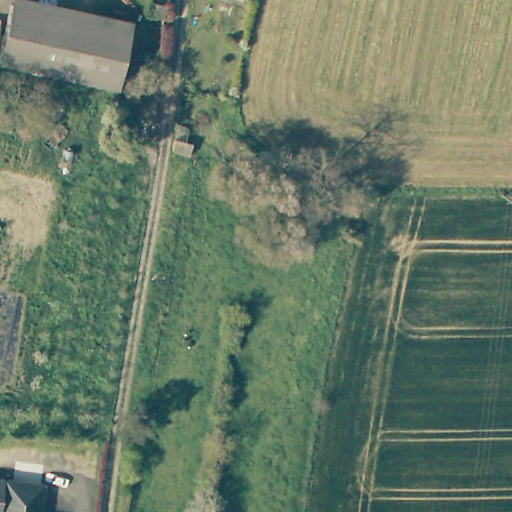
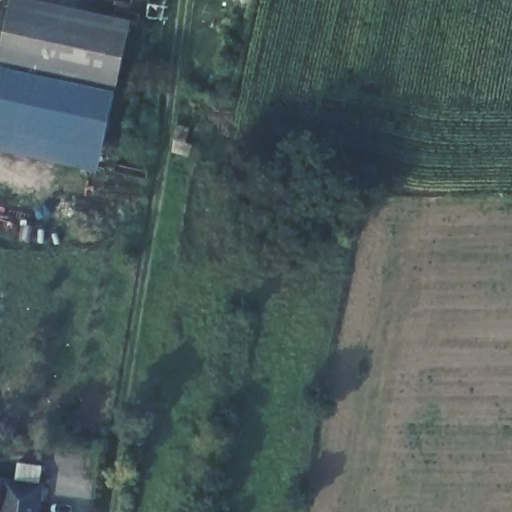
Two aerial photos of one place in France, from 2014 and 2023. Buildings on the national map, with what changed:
unchanged [(121,92),(0,61),(0,55),(14,0),(31,0),(137,27),(121,92)]
new [(0,152),(0,61),(114,90),(97,173),(0,152)]
demolished [(193,146),(186,174),(171,173),(175,143),(193,146)]
unchanged [(38,512),(1,512),(4,480),(41,483),(38,512)]

